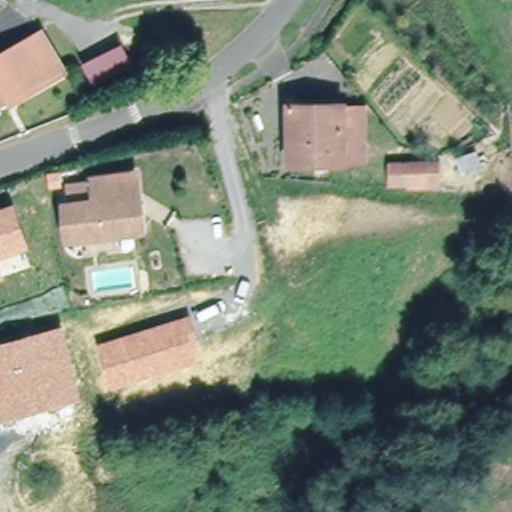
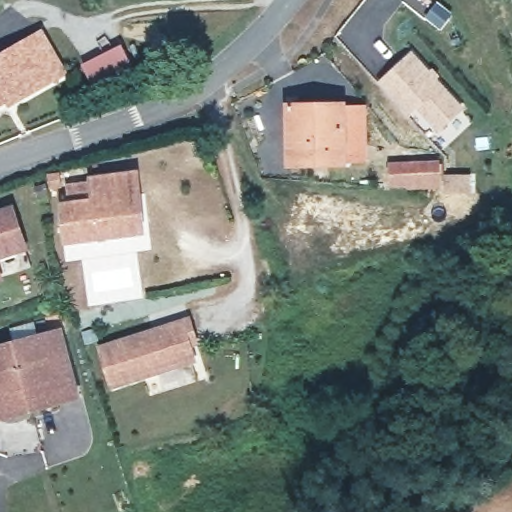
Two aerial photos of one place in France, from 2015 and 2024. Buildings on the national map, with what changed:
unchanged [(10,102),(8,98),(0,103),(0,54),(42,30),(65,71),(10,102)]
unchanged [(124,42),(135,66),(94,86),(82,62),(124,42)]
new [(430,69),(433,66),(442,75),(439,79),(464,107),(437,129),(418,108),(410,115),(380,81),(413,50),(430,69)]
unchanged [(298,103),(355,102),(355,161),(296,162),(296,103),(298,103)]
unchanged [(408,184),(408,181),(391,181),(391,162),(425,161),(440,160),(440,182),(425,182),(425,184),(408,184)]
unchanged [(122,245),(121,231),(72,237),(69,203),(71,202),(70,184),(98,180),(97,178),(140,173),(147,227),(145,227),(146,245),(122,245)]
unchanged [(26,243),(0,252),(0,210),(15,205),(26,243)]
unchanged [(0,270),(1,273),(0,274),(0,270)]
unchanged [(192,347),(199,362),(110,390),(97,345),(191,316),(200,345),(192,347)]
unchanged [(0,421),(0,343),(63,327),(81,399),(0,421)]

